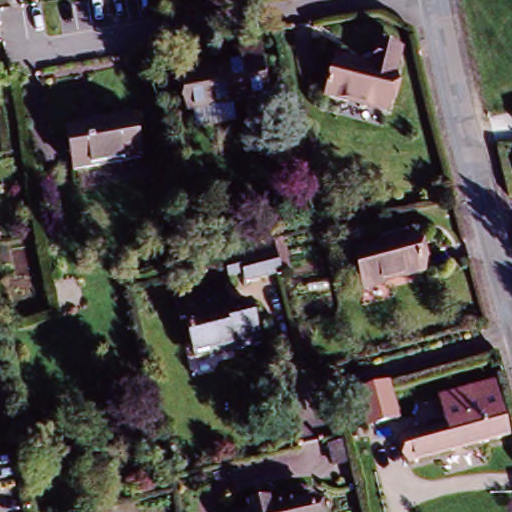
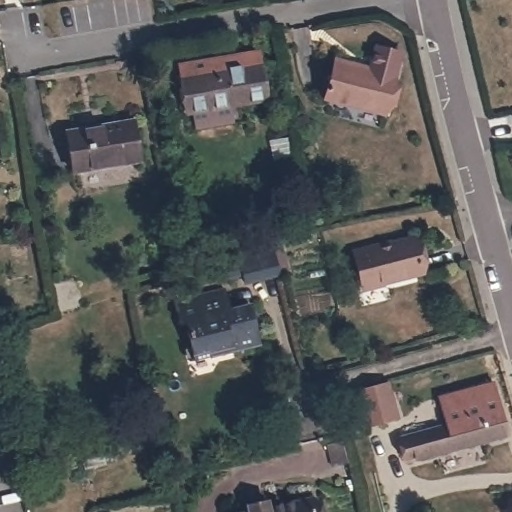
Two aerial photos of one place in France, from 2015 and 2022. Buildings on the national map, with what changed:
unchanged [(357,65),(357,68),(370,71),(375,48),(393,52),(390,64),(397,66),(384,115),(325,99),(334,59),(357,65)]
unchanged [(190,138),(186,118),(182,119),(177,83),(235,73),(232,60),(253,56),(262,105),(226,111),(229,131),(190,138)]
unchanged [(133,122),(140,161),(73,172),(67,133),(133,122)]
unchanged [(382,248),(413,240),(422,274),(362,289),(353,252),(381,245),(382,248)]
unchanged [(247,285),(233,289),(228,270),(242,264),(277,254),(285,251),(293,283),(285,285),(250,295),(247,285)]
unchanged [(208,353),(194,357),(185,323),(180,325),(175,304),(224,291),(229,311),(250,305),(260,345),(210,358),(208,353)]
unchanged [(387,383),(397,419),(367,427),(357,391),(387,383)]
unchanged [(407,467),(400,441),(446,429),(438,402),(492,388),(507,440),(407,467)]
unchanged [(257,509),(278,504),(280,508),(322,499),(324,512),(258,512),(257,509)]

